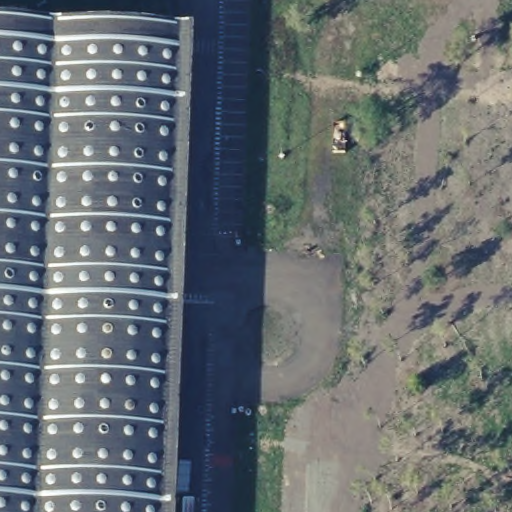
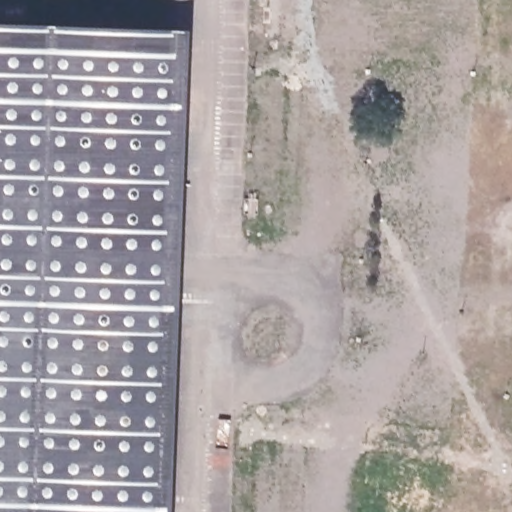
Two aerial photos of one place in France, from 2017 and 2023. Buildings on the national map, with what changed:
unchanged [(186,27),(167,512),(0,512),(0,20),(186,27)]

